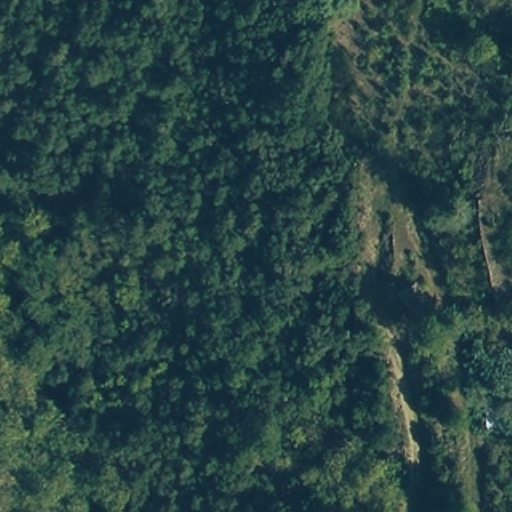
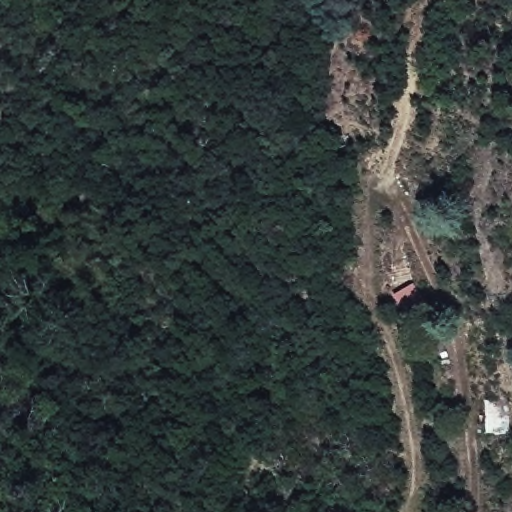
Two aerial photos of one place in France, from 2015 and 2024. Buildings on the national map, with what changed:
unchanged [(395,295),(417,281),(440,310),(415,321),(395,295)]
unchanged [(487,396),(512,399),(512,435),(488,436),(487,396)]

